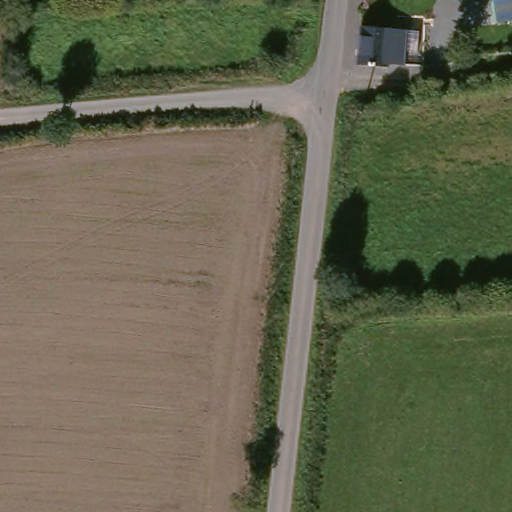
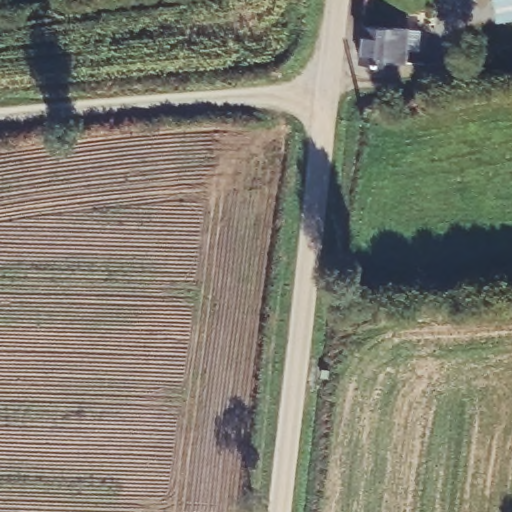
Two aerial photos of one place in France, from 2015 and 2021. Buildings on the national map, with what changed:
unchanged [(491,0),(512,0),(512,7),(491,7),(491,0)]
unchanged [(400,69),(385,68),(357,65),(360,30),(386,33),(391,33),(402,34),(400,69)]

